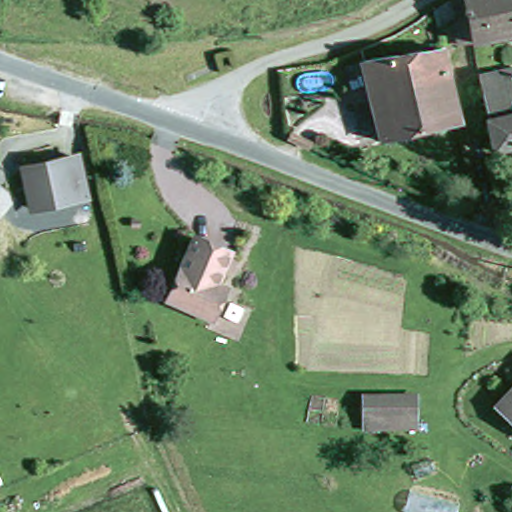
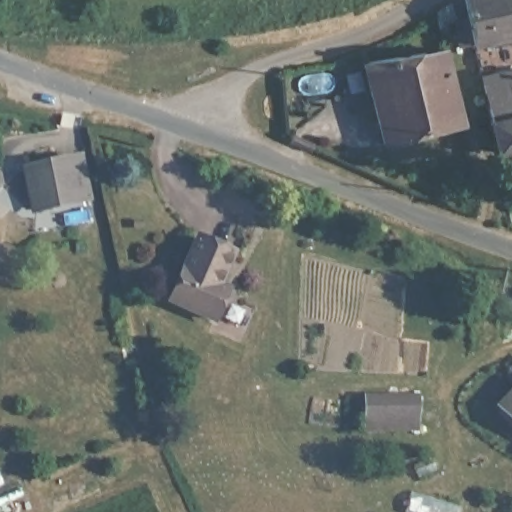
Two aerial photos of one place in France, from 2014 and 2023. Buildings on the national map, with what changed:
unchanged [(448,19),(464,16),(462,0),(512,0),(512,30),(451,41),(448,19)]
unchanged [(449,68),(451,75),(461,130),(381,146),(365,63),(446,45),(449,68)]
unchanged [(483,75),(512,70),(512,146),(496,149),(483,75)]
unchanged [(65,183),(34,189),(27,152),(76,143),(81,165),(84,179),(65,183)]
unchanged [(201,239),(237,257),(223,287),(232,290),(216,320),(172,299),(201,242),(201,239)]
unchanged [(512,386),(512,417),(496,400),(512,386)]
unchanged [(366,414),(366,394),(419,395),(418,416),(417,424),(365,422),(366,414)]
unchanged [(424,482),(419,471),(439,465),(443,478),(424,482)]

